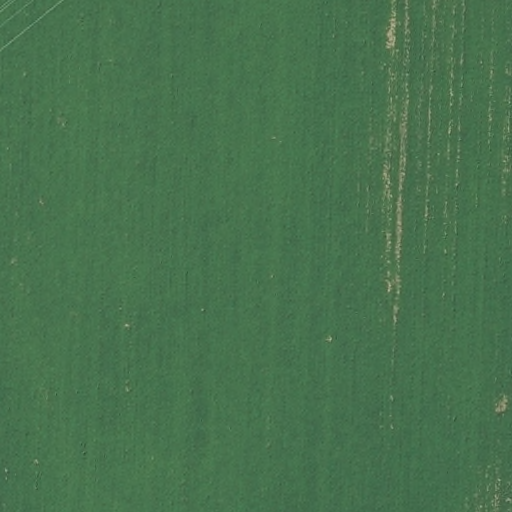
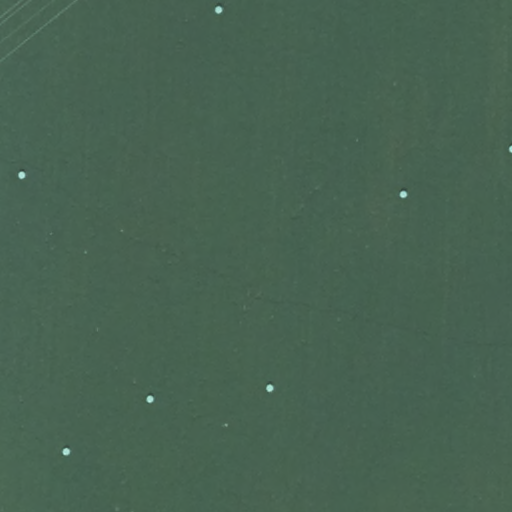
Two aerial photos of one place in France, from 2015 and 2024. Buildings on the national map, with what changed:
[]

